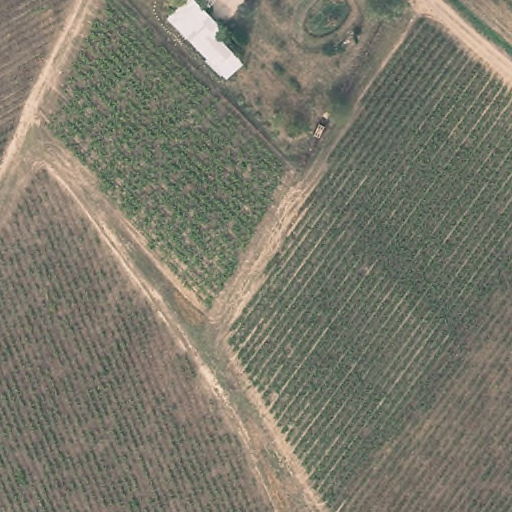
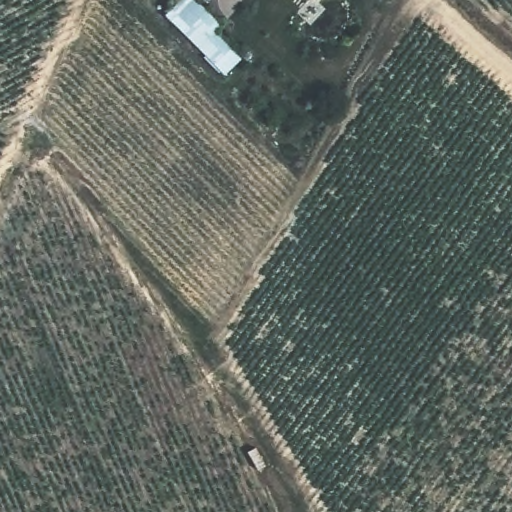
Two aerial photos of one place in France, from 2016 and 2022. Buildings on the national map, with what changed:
unchanged [(173,13),(185,0),(195,0),(219,23),(214,31),(234,54),(223,70),(173,13)]

